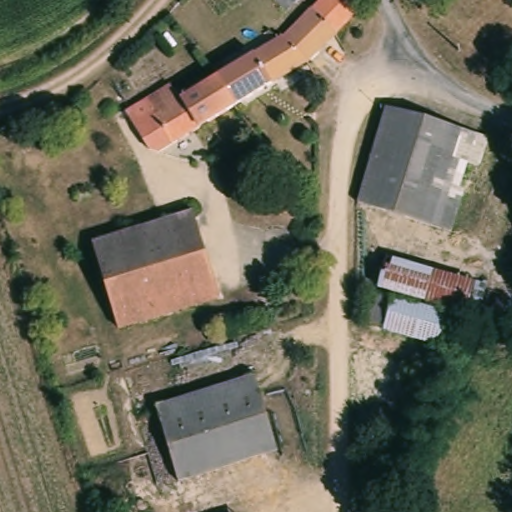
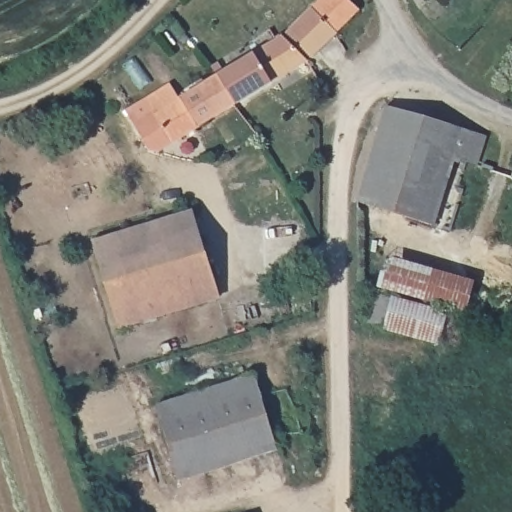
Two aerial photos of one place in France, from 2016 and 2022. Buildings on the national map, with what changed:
unchanged [(237,110),(221,80),(215,71),(221,67),(227,76),(288,40),(328,0),(348,0),(356,7),(363,15),(313,63),(237,110)]
unchanged [(161,155),(152,154),(129,114),(173,88),(182,103),(221,80),(237,110),(161,155)]
unchanged [(481,161),(497,166),(487,198),(465,192),(454,230),(361,201),(389,105),(489,135),(481,161)]
unchanged [(222,300),(121,330),(95,245),(196,214),(222,300)]
unchanged [(476,286),(468,315),(381,290),(389,261),(476,286)]
unchanged [(441,346),(388,331),(369,326),(376,296),(396,302),(449,316),(469,322),(461,351),(441,346)]
unchanged [(280,452),(180,483),(159,408),(258,377),(280,452)]

